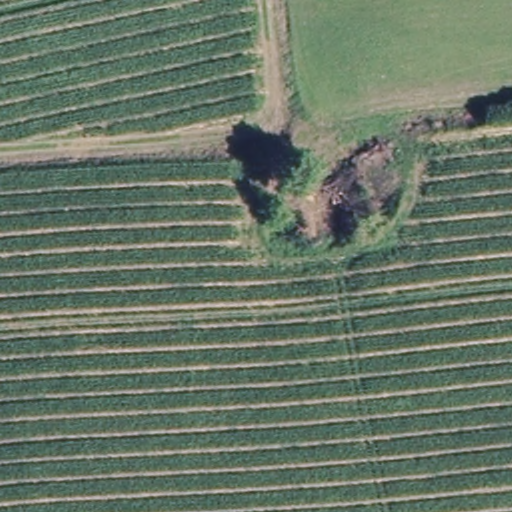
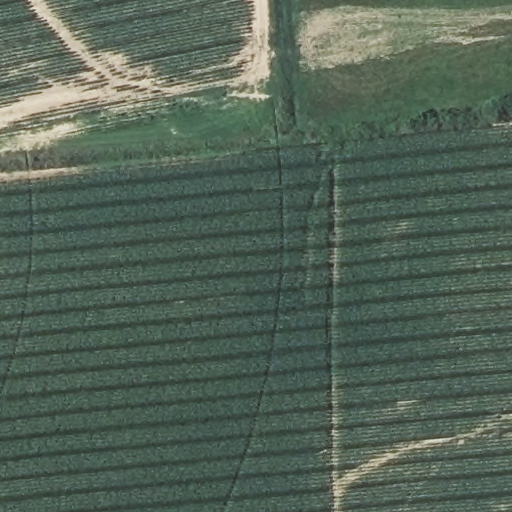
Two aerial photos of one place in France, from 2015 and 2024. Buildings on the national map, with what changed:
[]

